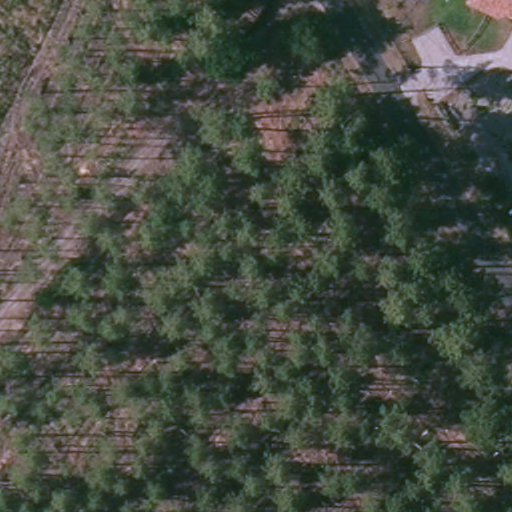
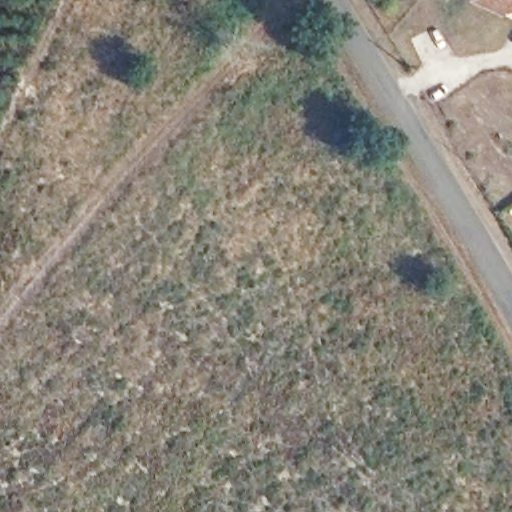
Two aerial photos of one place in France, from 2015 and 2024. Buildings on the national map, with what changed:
unchanged [(506,7),(503,12),(492,7),(476,0),(512,0),(512,10),(506,7)]

